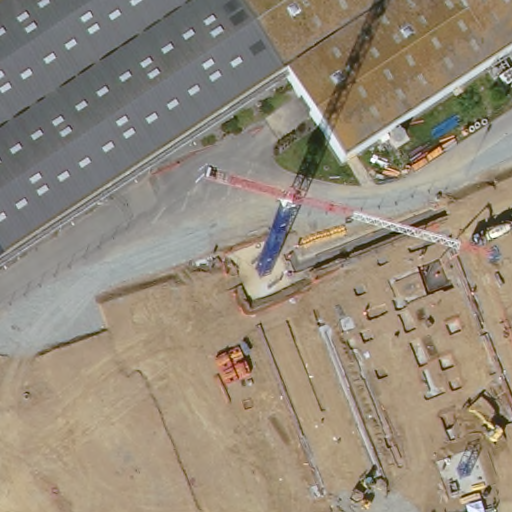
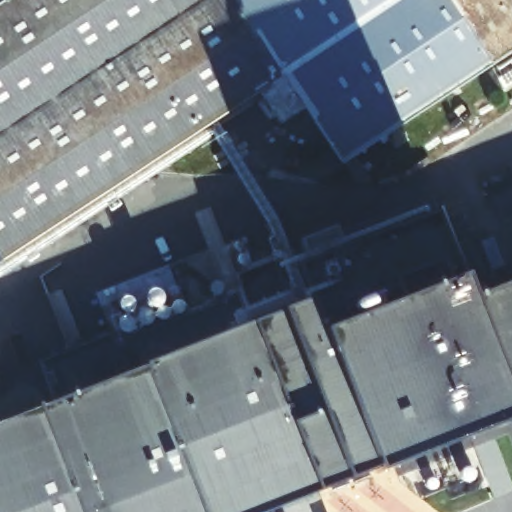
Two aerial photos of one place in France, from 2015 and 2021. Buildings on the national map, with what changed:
unchanged [(512,0),(512,51),(338,163),(282,77),(61,220),(0,260),(0,0),(512,0)]
new [(350,480),(268,512),(0,512),(0,423),(58,401),(39,362),(112,335),(116,344),(240,296),(232,279),(294,254),(300,264),(435,212),(461,275),(469,294),(512,279),(512,418),(379,471),(350,480)]
demolished [(321,250),(287,272),(275,254),(272,255),(273,257),(273,259),(274,261),(274,263),(274,265),(274,267),(274,269),(273,271),(273,273),(272,275),(271,277),(270,279),(269,281),(268,283),(267,284),(266,286),(264,287),(263,288),(261,290),(259,291),(257,292),(256,293),(254,293),(252,294),(250,294),(248,295),(246,295),(244,295),(241,295),(239,294),(237,294),(235,293),(234,293),(232,292),(230,291),(228,290),(226,289),(225,287),(223,286),(222,284),(221,283),(220,281),(219,279),(218,277),(217,275),(216,273),(216,272),(215,270),(215,267),(215,265),(215,263),(215,261),(216,259),(216,257),(217,255),(218,253),(219,252),(220,250),(221,248),(222,247),(223,245),(225,244),(226,242),(228,241),(230,240),(232,239),(233,238),(235,237),(237,237),(239,236),(241,236),(243,236),(245,236),(247,236),(250,236),(252,237),(253,237),(255,238),(257,239),(259,240),(261,241),(265,239),(299,217),(321,250)]
new [(314,511),(314,512),(311,512),(314,511)]

